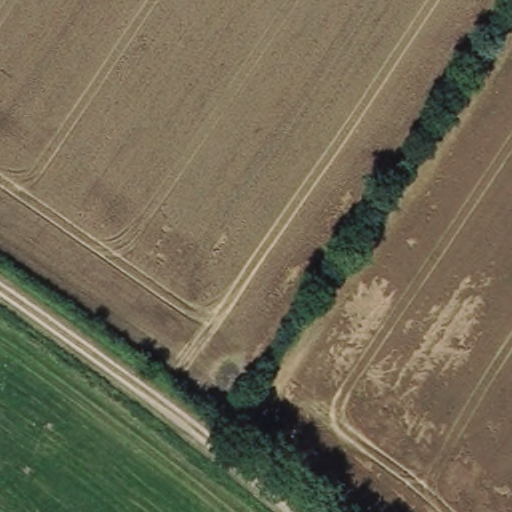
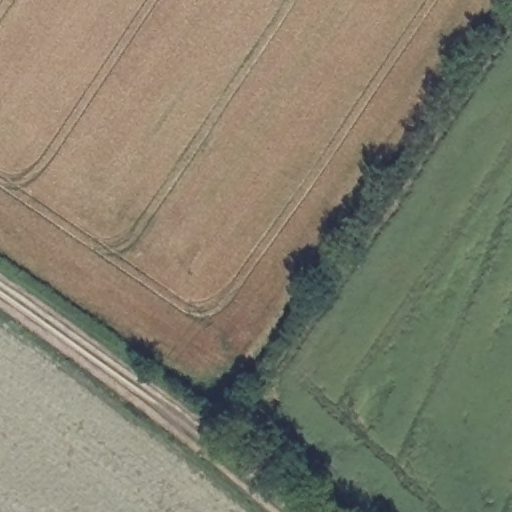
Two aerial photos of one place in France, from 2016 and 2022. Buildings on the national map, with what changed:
[]

